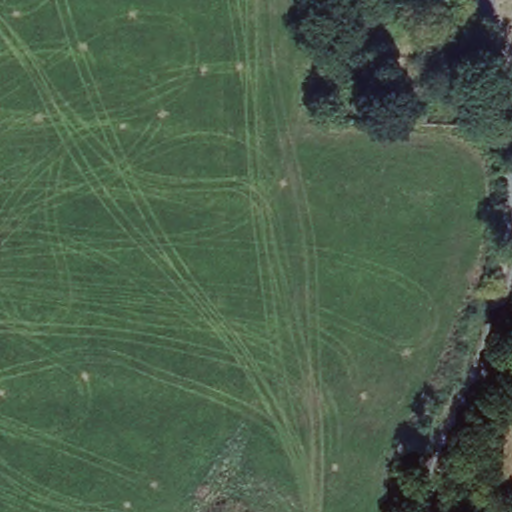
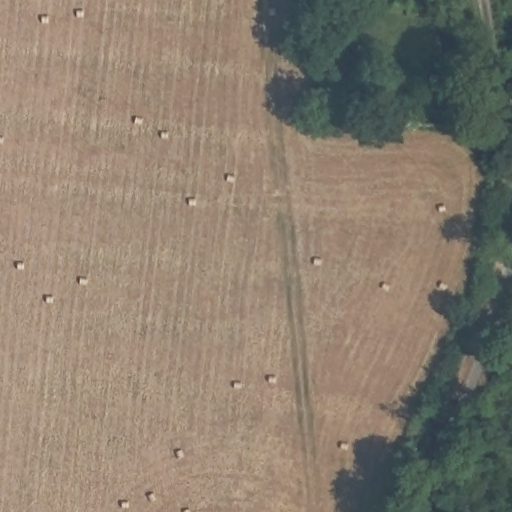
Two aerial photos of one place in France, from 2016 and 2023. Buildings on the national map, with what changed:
unchanged [(407,70),(443,67),(445,108),(406,107),(407,70)]

